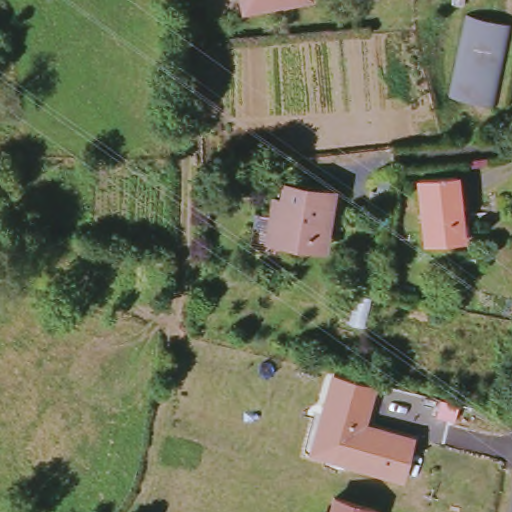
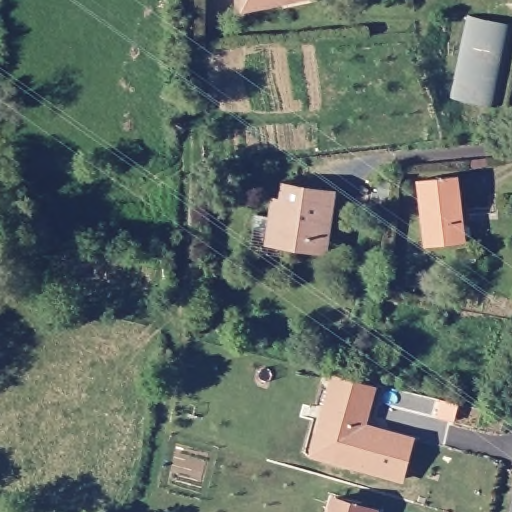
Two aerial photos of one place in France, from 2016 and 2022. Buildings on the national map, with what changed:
unchanged [(243,0),(286,0),(246,10),(243,0)]
unchanged [(465,14),(512,22),(512,23),(497,105),(449,96),(465,14)]
unchanged [(461,171),(467,240),(429,245),(421,176),(461,171)]
unchanged [(274,202),(283,204),(285,189),(328,195),(321,252),(269,245),(274,202)]
unchanged [(406,483),(313,458),(336,377),(381,390),(371,425),(419,440),(406,483)]
unchanged [(359,512),(332,512),(333,506),(359,512)]

